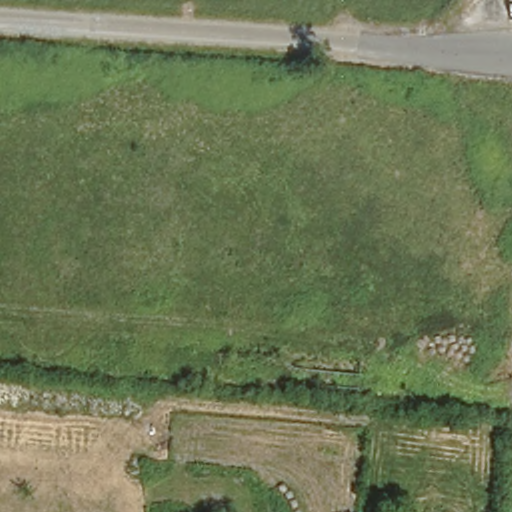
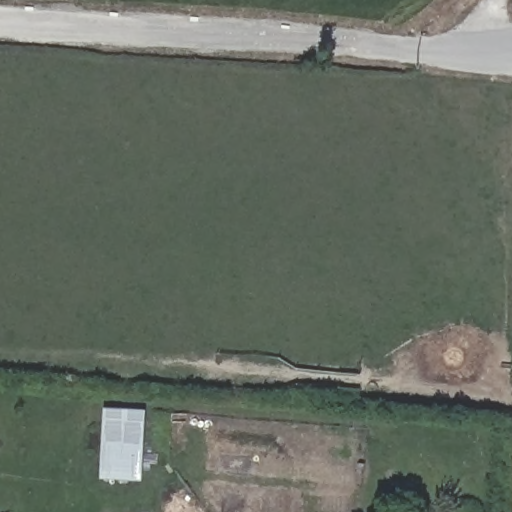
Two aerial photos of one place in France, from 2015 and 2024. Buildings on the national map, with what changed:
new [(139,481),(97,479),(101,408),(142,410),(139,481)]

